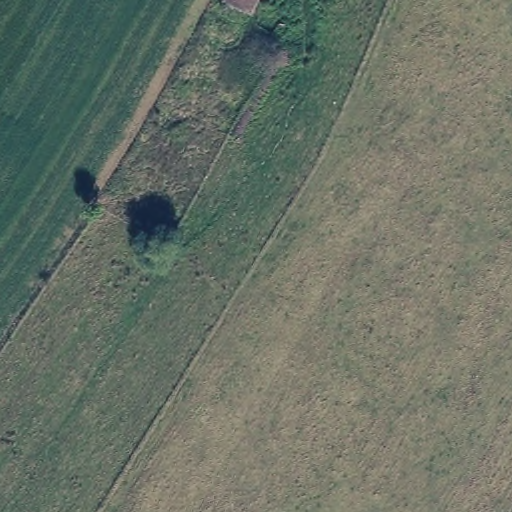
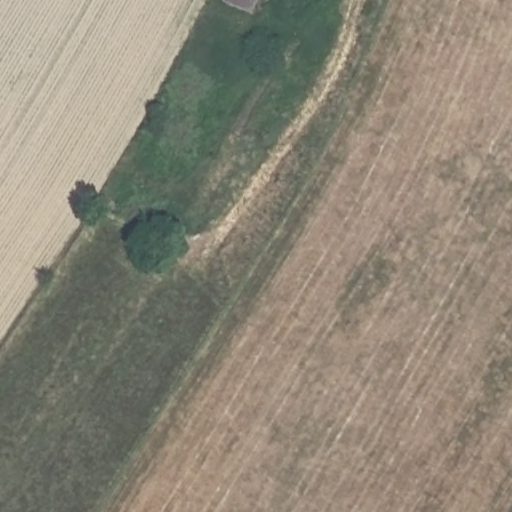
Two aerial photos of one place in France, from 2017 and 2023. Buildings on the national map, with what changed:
unchanged [(221,0),(262,0),(254,17),(221,1),(221,0)]

